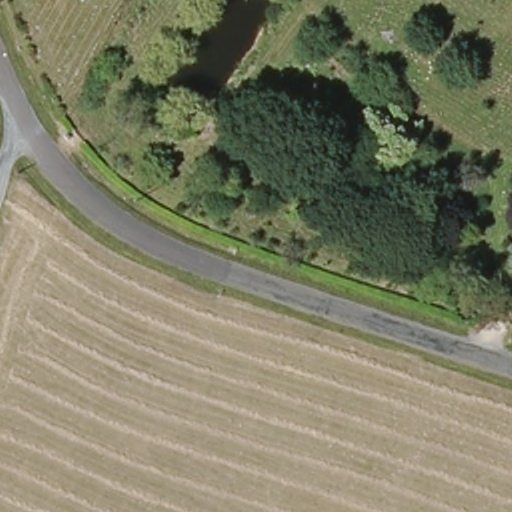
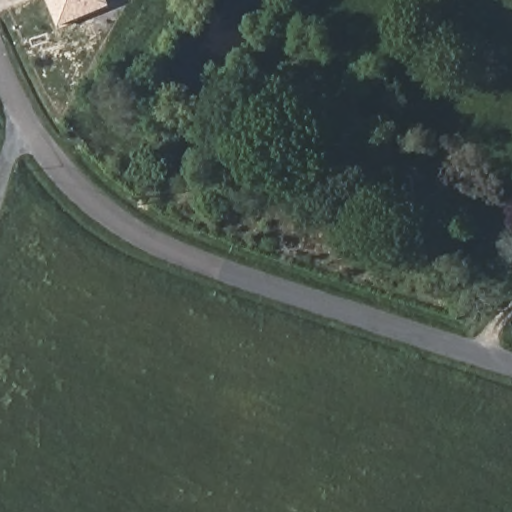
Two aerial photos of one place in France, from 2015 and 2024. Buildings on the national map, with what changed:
new [(50,0),(105,0),(107,7),(61,26),(50,0)]

